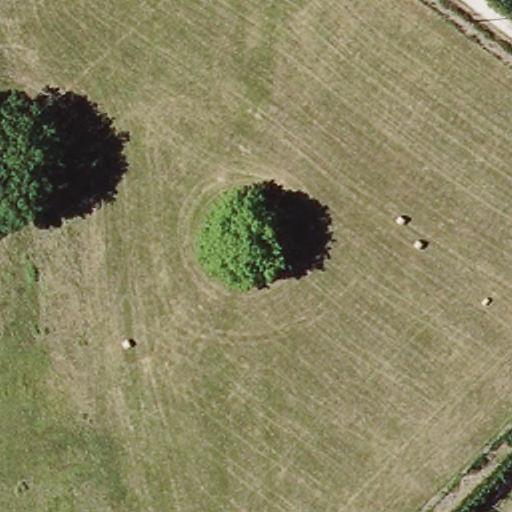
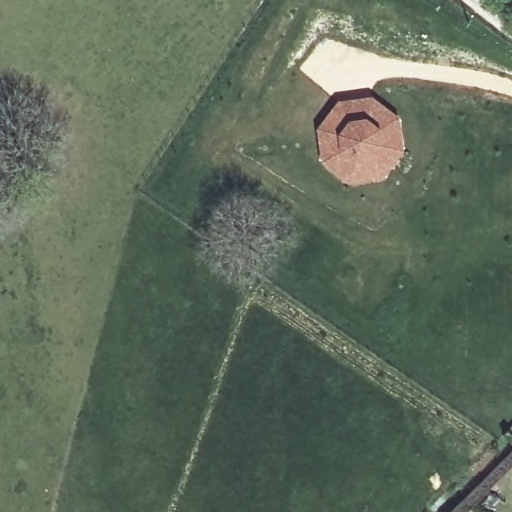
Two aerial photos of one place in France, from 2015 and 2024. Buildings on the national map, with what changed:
new [(372,95),(400,117),(405,150),(383,178),(349,183),(323,161),(318,128),(338,101),(372,95)]

